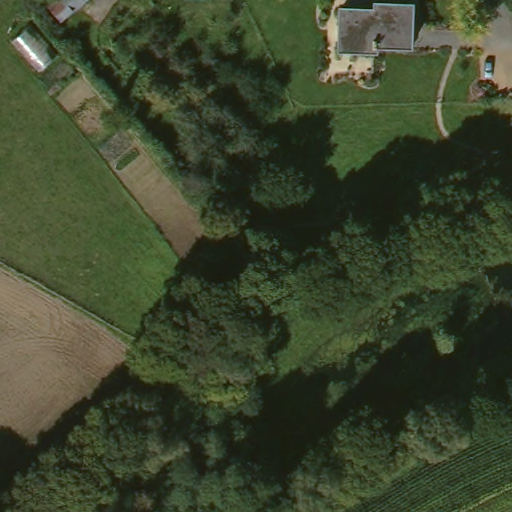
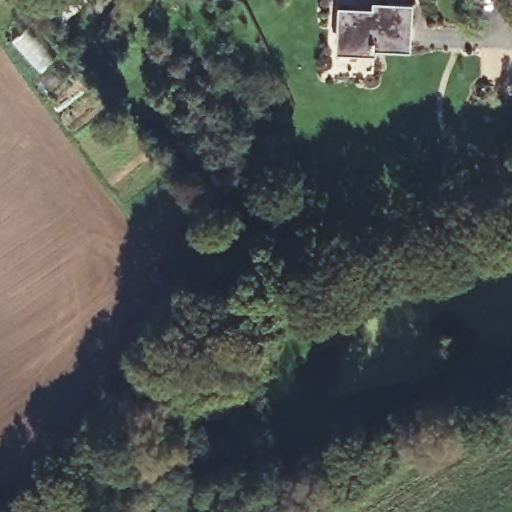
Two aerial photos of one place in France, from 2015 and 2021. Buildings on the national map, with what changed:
unchanged [(372,6),(372,13),(411,14),(410,45),(374,44),(373,51),(336,48),(338,6),(372,6)]

